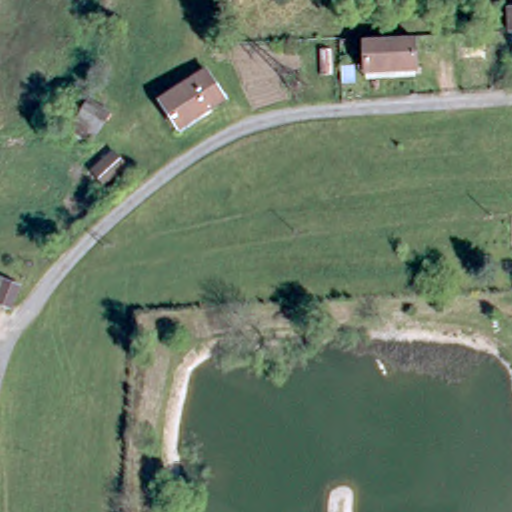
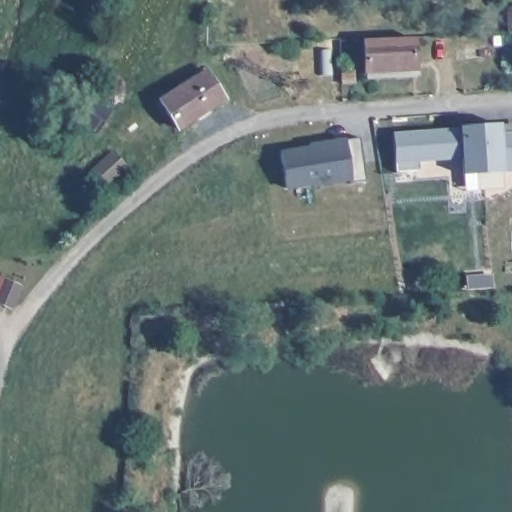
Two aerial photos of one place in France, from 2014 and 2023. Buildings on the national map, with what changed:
unchanged [(507,13),(512,13),(512,35),(511,35),(509,35),(507,13)]
unchanged [(417,79),(368,81),(367,52),(415,50),(417,79)]
unchanged [(320,57),(332,56),(334,82),(322,83),(320,57)]
unchanged [(162,103),(205,75),(223,101),(177,131),(160,105),(162,103)]
unchanged [(74,124),(88,102),(92,104),(98,93),(120,108),(114,118),(108,115),(90,143),(74,132),(70,130),(74,124)]
new [(500,123),(500,133),(512,132),(512,172),(494,172),(499,188),(460,190),(459,159),(416,161),(417,169),(392,171),(391,133),(458,126),(500,123)]
new [(359,137),(365,179),(352,181),(287,191),(280,149),(346,138),(359,137)]
unchanged [(104,186),(89,170),(81,161),(102,143),(110,152),(124,168),(104,186)]
unchanged [(7,311),(0,308),(0,281),(15,285),(7,311)]

